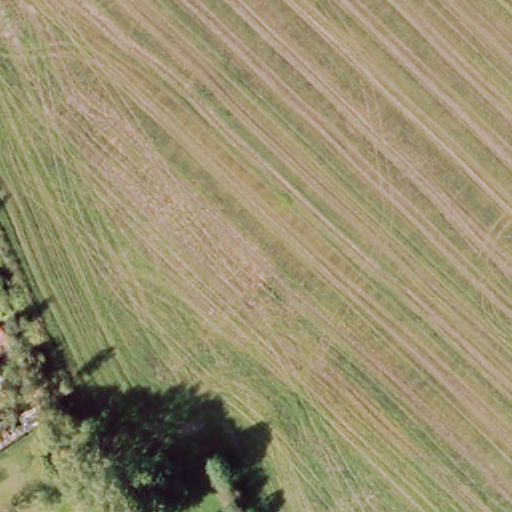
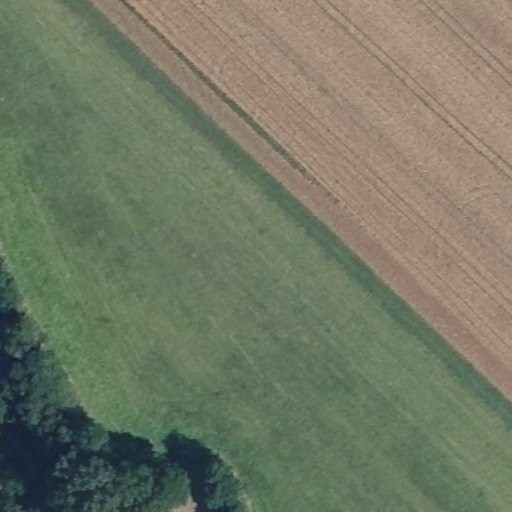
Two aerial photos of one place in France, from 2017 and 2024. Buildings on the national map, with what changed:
unchanged [(0,343),(0,322),(4,319),(13,334),(0,343)]

